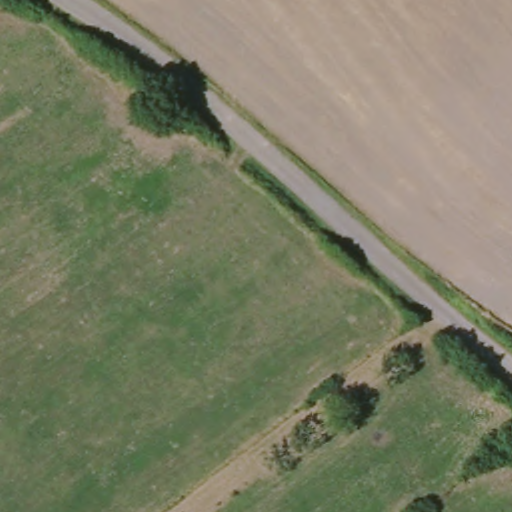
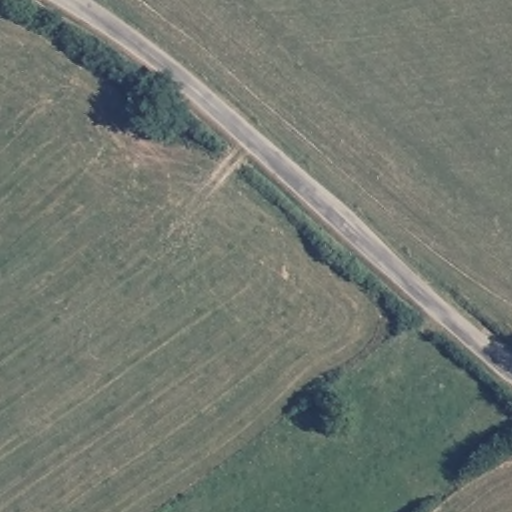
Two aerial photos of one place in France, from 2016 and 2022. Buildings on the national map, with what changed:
[]

